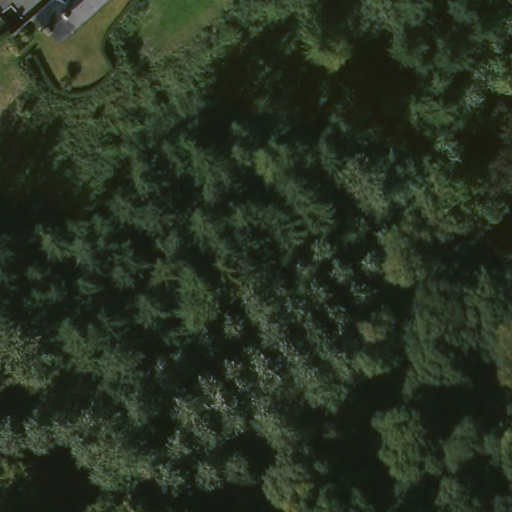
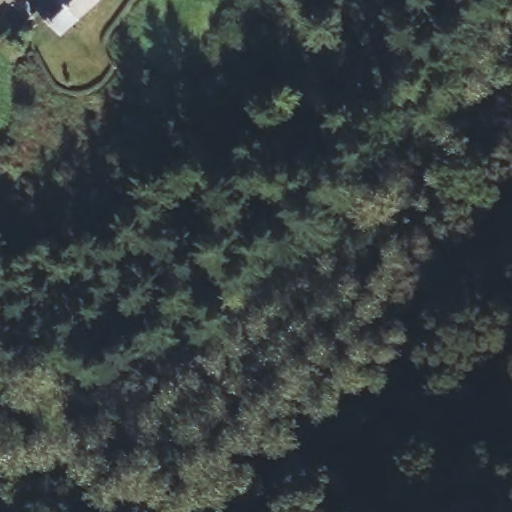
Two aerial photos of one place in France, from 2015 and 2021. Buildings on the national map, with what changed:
unchanged [(42,15),(39,12),(52,0),(105,0),(63,35),(42,15)]

